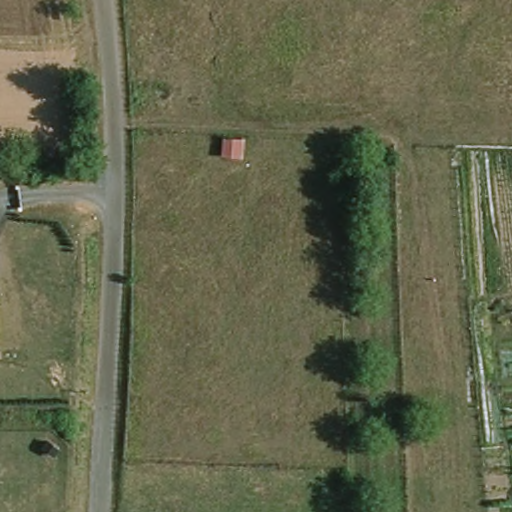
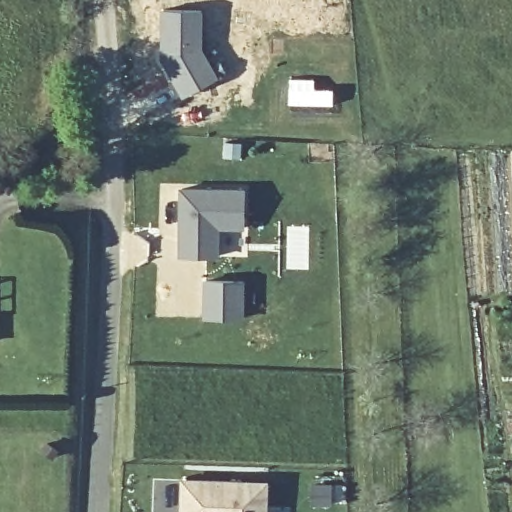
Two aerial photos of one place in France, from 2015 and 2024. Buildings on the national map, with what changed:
new [(158,9),(202,9),(203,47),(219,77),(179,100),(158,60),(158,9)]
new [(179,203),(179,186),(243,186),(243,224),(217,224),(217,252),(179,252),(179,221),(179,203)]
new [(202,278),(244,280),(243,321),(201,320),(202,278)]
new [(268,482),(267,512),(182,512),(182,511),(183,480),(268,482)]

